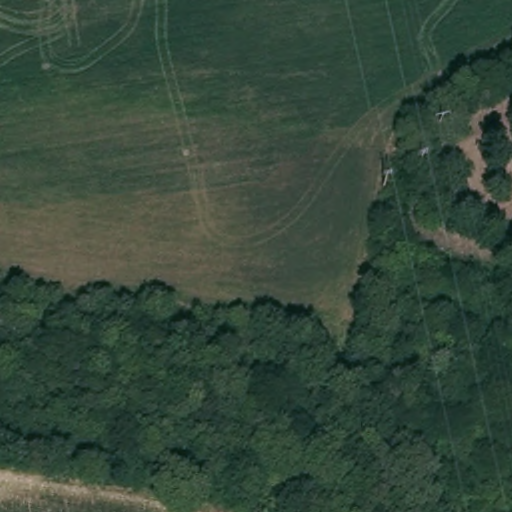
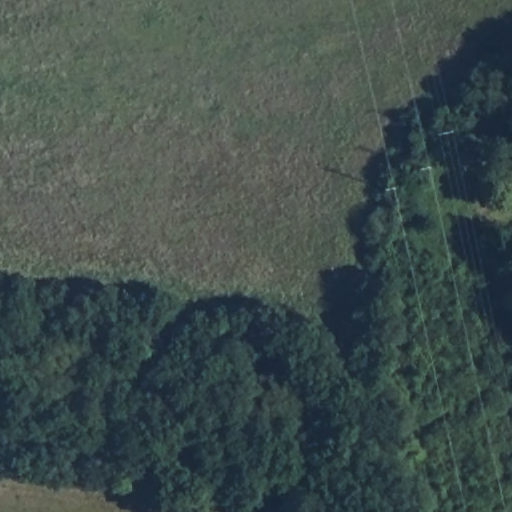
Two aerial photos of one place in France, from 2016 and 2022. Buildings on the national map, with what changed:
[]

